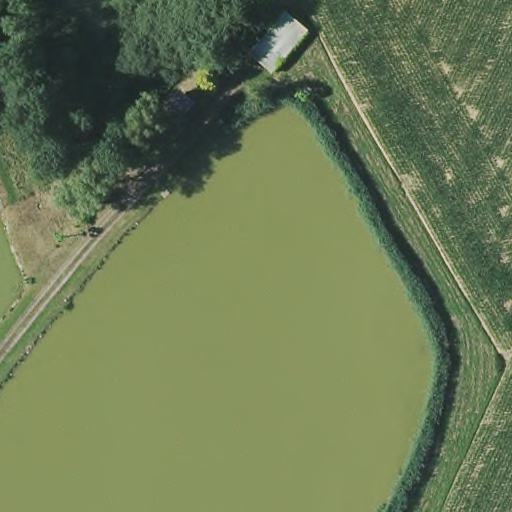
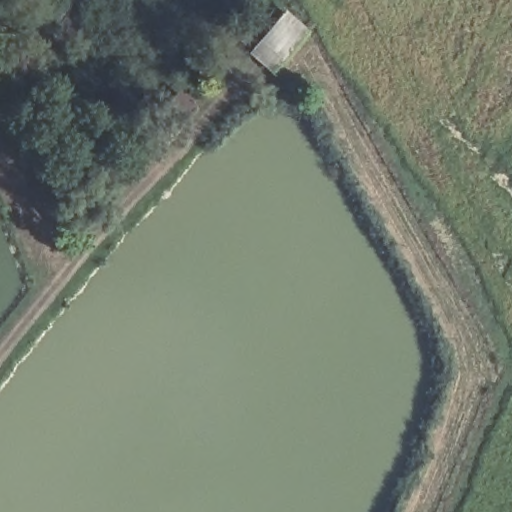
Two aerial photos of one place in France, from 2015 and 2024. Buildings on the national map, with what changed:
unchanged [(275,78),(253,56),(288,11),(310,31),(275,78)]
unchanged [(107,172),(87,156),(117,127),(142,147),(107,172)]

